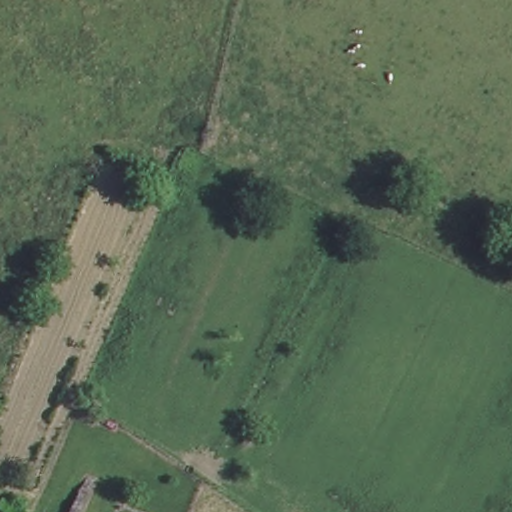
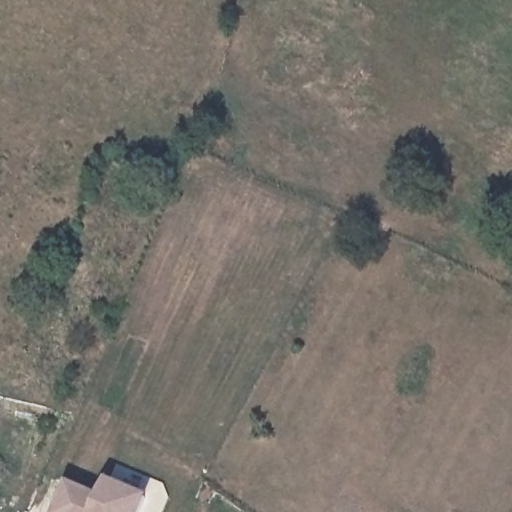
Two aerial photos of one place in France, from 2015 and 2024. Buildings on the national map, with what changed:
new [(102,493),(110,477),(151,494),(144,512),(55,512),(68,480),(102,493)]

